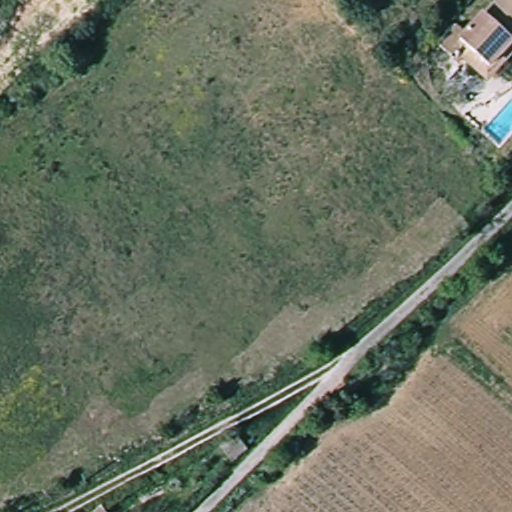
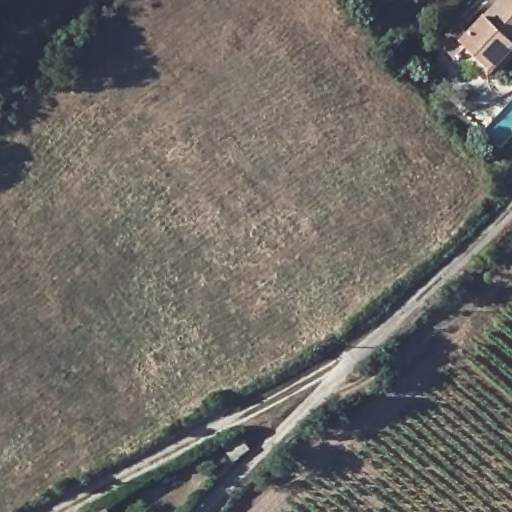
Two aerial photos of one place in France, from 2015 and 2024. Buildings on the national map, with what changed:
unchanged [(499,0),(512,0),(512,56),(489,80),(464,54),(455,63),(438,45),(456,27),(467,38),(503,3),(499,0)]

